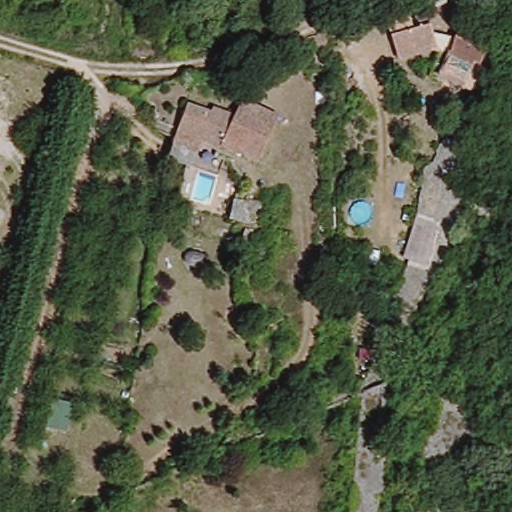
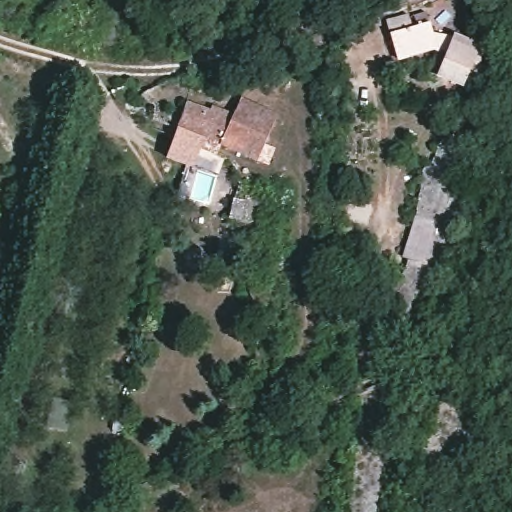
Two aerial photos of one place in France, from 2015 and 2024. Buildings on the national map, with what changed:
unchanged [(438,86),(442,76),(448,62),(438,58),(435,56),(397,66),(391,41),(417,34),(415,24),(425,21),(432,43),(453,49),(455,47),(474,55),(467,71),(457,94),(438,86)]
unchanged [(216,101),(238,110),(245,95),(264,104),(282,113),(263,156),(244,147),(225,139),(224,141),(178,123),(189,98),(212,107),(216,101)]
unchanged [(178,123),(224,141),(220,151),(224,153),(217,169),(167,148),(173,133),(178,123)]
unchanged [(420,176),(452,185),(435,270),(400,259),(420,176)]
unchanged [(231,196),(256,203),(250,222),(242,220),(225,215),(231,196)]
unchanged [(382,459),(379,512),(347,512),(352,453),(382,459)]

